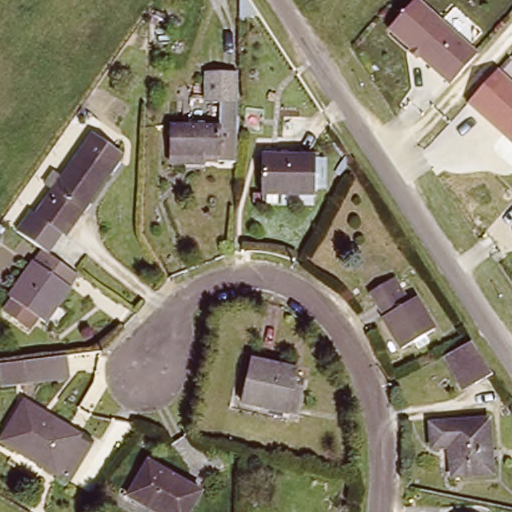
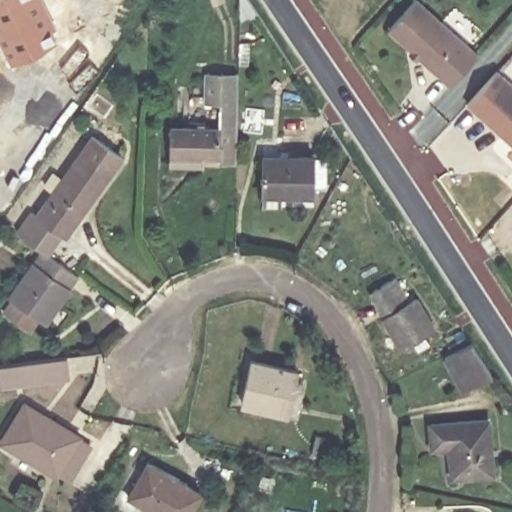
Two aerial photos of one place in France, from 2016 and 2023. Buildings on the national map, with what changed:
new [(42,0),(53,21),(48,24),(56,41),(11,63),(0,40),(0,0),(42,0)]
unchanged [(438,76),(415,54),(413,57),(406,51),(409,48),(386,27),(410,0),(417,0),(466,45),(474,53),(446,83),(438,76)]
unchanged [(173,149),(174,122),(221,125),(223,95),(211,94),(213,66),(243,66),(238,160),(204,159),(173,157),(173,149)]
unchanged [(512,82),(512,141),(472,103),(501,71),(512,82)]
unchanged [(71,240),(65,236),(55,253),(82,275),(50,326),(43,320),(34,330),(3,308),(42,249),(18,230),(28,213),(36,215),(93,135),(128,157),(71,240)]
unchanged [(265,155),(316,156),(314,192),(284,191),(284,205),(264,205),(265,155)]
unchanged [(363,282),(387,269),(404,303),(415,297),(433,330),(399,348),(363,282)]
unchanged [(460,367),(450,373),(443,360),(471,345),(493,379),(473,390),(460,367)]
unchanged [(299,372),(294,410),(246,402),(255,365),(299,372)]
unchanged [(58,369),(60,393),(19,397),(18,390),(0,392),(0,375),(58,369)]
unchanged [(74,467),(63,461),(61,464),(8,434),(26,403),(78,431),(76,433),(88,439),(74,467)]
unchanged [(491,421),(492,470),(452,471),(452,443),(434,443),(434,422),(491,421)]
unchanged [(134,496),(155,461),(204,490),(193,512),(160,512),(134,496)]

